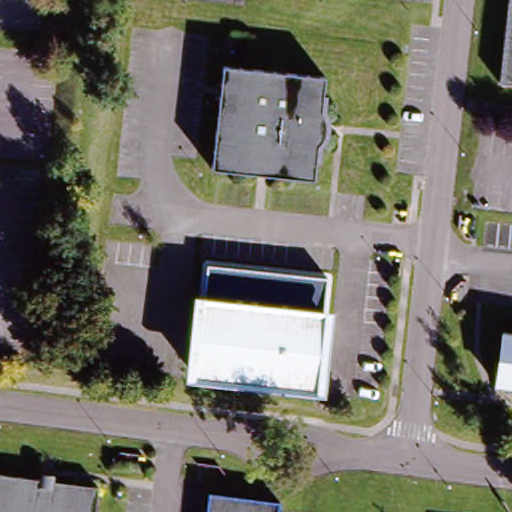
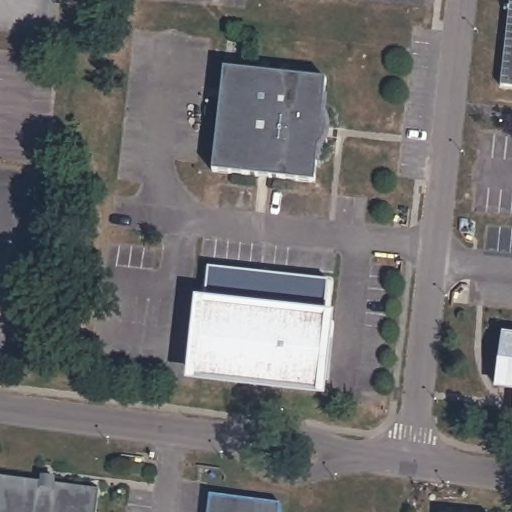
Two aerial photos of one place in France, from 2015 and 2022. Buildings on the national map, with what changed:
unchanged [(510,0),(512,0),(512,84),(500,82),(510,0)]
unchanged [(326,71),(322,106),(325,113),(327,120),(326,129),(322,135),(318,140),(314,175),(210,164),(222,60),(326,71)]
unchanged [(337,379),(328,378),(327,387),(202,374),(208,306),(212,307),(215,269),(335,282),(332,317),(335,318),(332,336),(341,337),(337,379)]
unchanged [(498,332),(512,334),(512,386),(492,384),(498,332)]
unchanged [(512,415),(510,415),(512,403),(512,415)]
unchanged [(49,470),(48,476),(94,482),(90,512),(0,512),(0,471),(35,475),(35,469),(49,470)]
unchanged [(278,507),(278,512),(203,512),(205,496),(278,507)]

